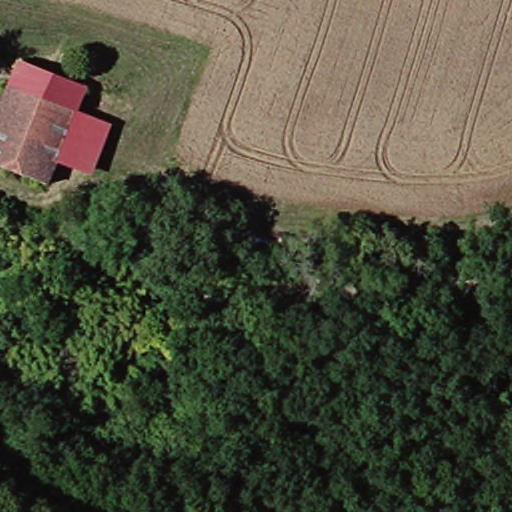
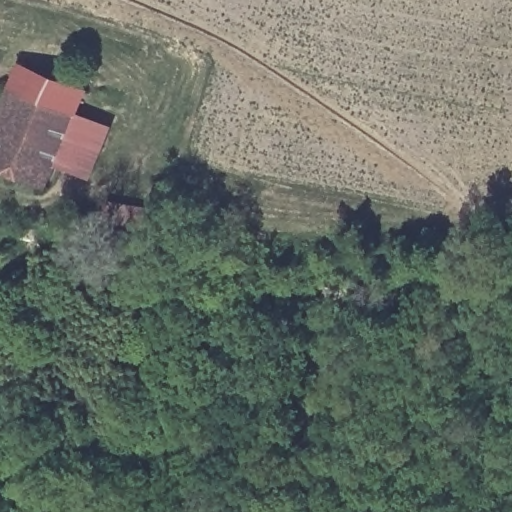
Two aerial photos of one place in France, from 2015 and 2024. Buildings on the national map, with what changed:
unchanged [(86,94),(79,112),(14,88),(21,70),(86,94)]
unchanged [(61,163),(52,188),(0,165),(0,127),(14,88),(79,112),(61,163)]
unchanged [(79,112),(115,125),(98,175),(61,163),(79,112)]
unchanged [(139,194),(139,209),(150,209),(149,225),(113,223),(115,194),(139,194)]

